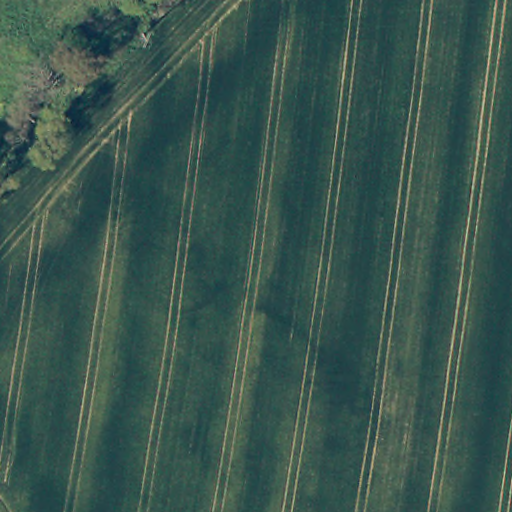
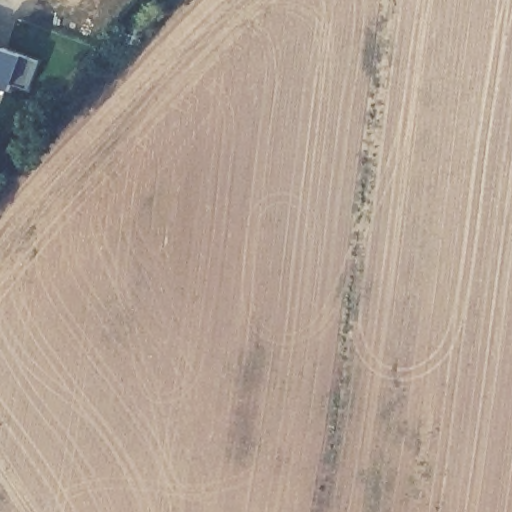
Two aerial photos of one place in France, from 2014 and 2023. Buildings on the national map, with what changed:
new [(39,62),(29,88),(13,82),(10,89),(0,86),(0,48),(39,62)]

